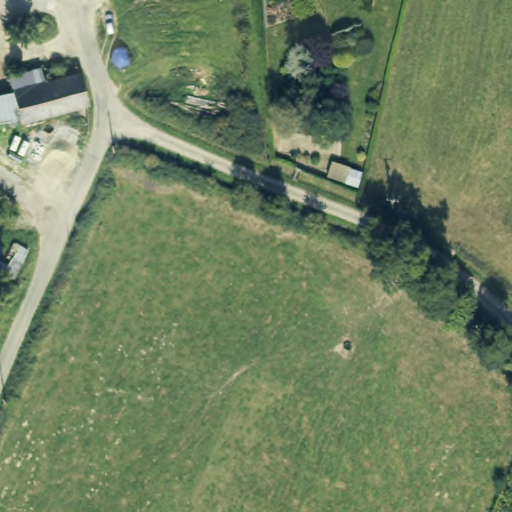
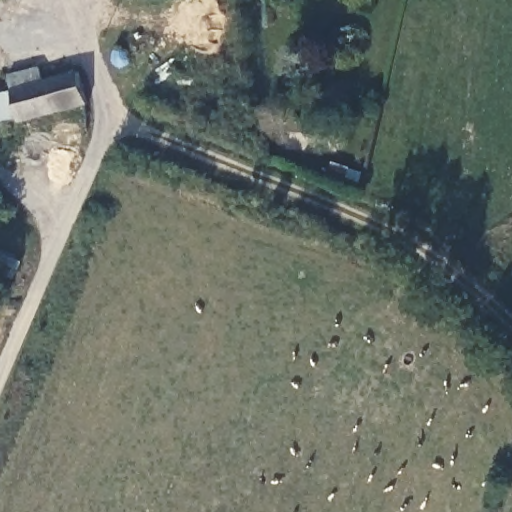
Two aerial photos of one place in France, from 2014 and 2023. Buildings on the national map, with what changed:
unchanged [(16,119),(10,94),(6,75),(36,67),(40,80),(77,71),(86,103),(16,119)]
unchanged [(16,119),(0,122),(0,95),(10,94),(16,119)]

